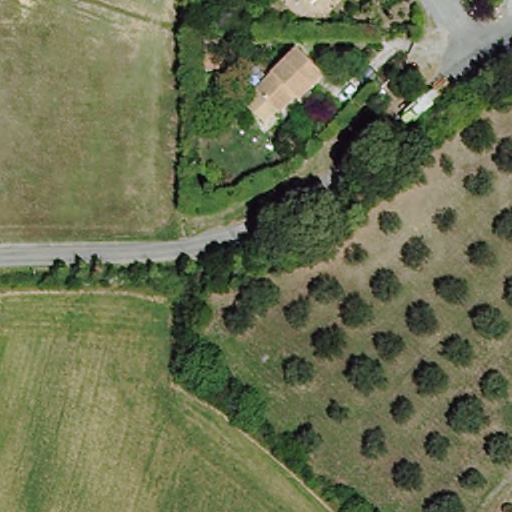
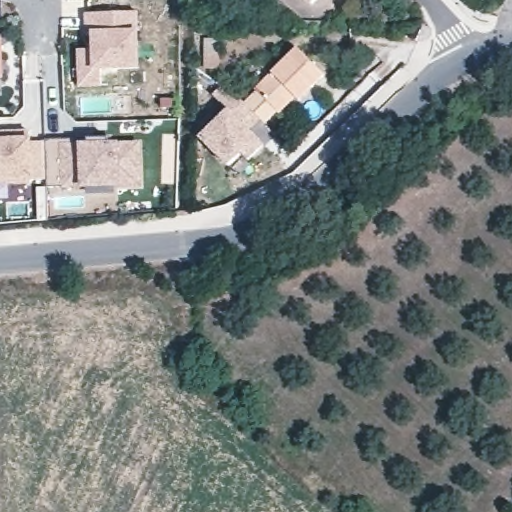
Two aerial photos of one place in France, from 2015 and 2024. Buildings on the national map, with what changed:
unchanged [(311,10),(301,0),(322,0),(311,10)]
new [(138,11),(139,67),(102,69),(103,84),(81,85),(80,51),(95,50),(94,32),(88,32),(88,12),(138,11)]
new [(4,40),(4,80),(0,80),(0,40),(4,40)]
unchanged [(296,94),(275,112),(273,109),(260,120),(245,104),(257,91),(254,88),(300,49),(324,77),(312,88),(300,97),(296,94)]
new [(228,110),(212,95),(225,84),(245,104),(260,120),(250,130),(266,146),(249,161),(243,154),(227,167),(199,139),(228,110)]
new [(47,179),(32,179),(32,182),(0,183),(0,132),(8,131),(8,139),(31,139),(31,141),(46,140),(47,179)]
new [(46,140),(89,139),(109,138),(109,141),(120,141),(139,141),(142,187),(120,187),(81,189),(47,187),(47,179),(46,140)]

